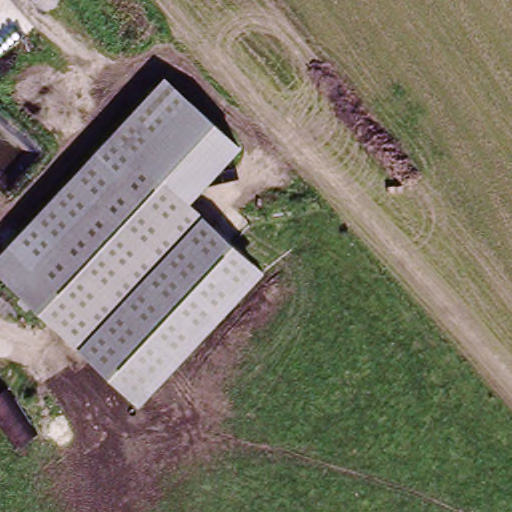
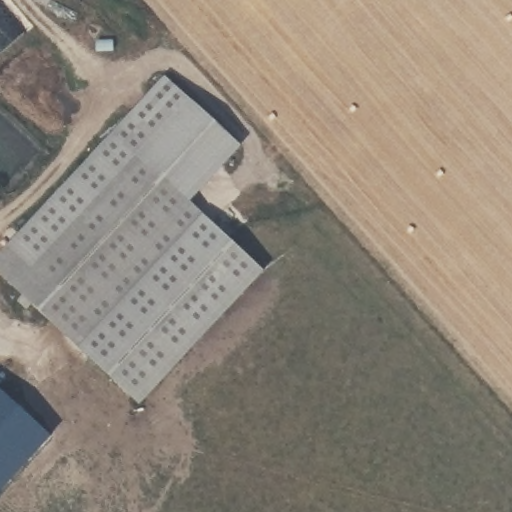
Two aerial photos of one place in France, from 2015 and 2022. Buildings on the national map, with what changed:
unchanged [(194,104),(243,151),(191,205),(142,158),(194,104)]
unchanged [(58,197),(118,135),(142,158),(42,263),(38,266),(14,244),(58,197)]
unchanged [(42,263),(142,158),(191,205),(67,335),(32,302),(0,272),(0,259),(14,244),(38,266),(42,263)]
unchanged [(67,335),(191,205),(214,227),(90,357),(67,335)]
unchanged [(214,227),(253,265),(129,395),(90,357),(214,227)]
new [(52,436),(0,494),(0,389),(52,436)]
demolished [(31,449),(9,463),(0,451),(0,403),(31,449)]

